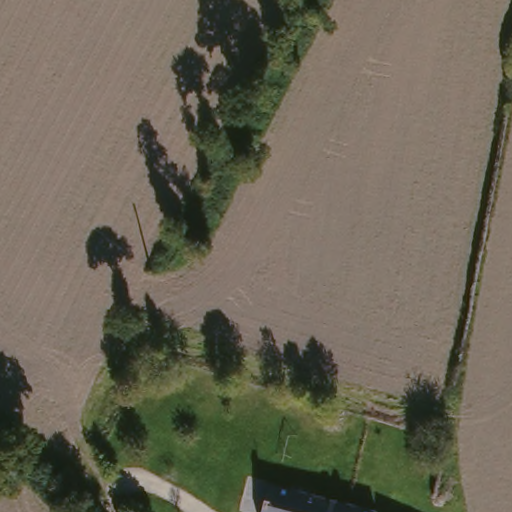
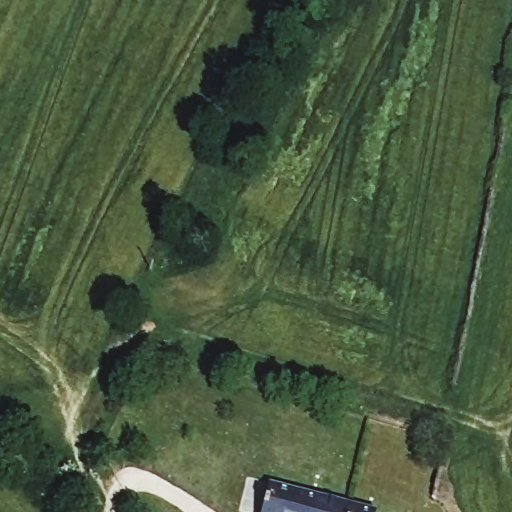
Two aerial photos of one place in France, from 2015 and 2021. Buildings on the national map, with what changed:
unchanged [(369,506),(368,512),(254,512),(262,478),(369,506)]

